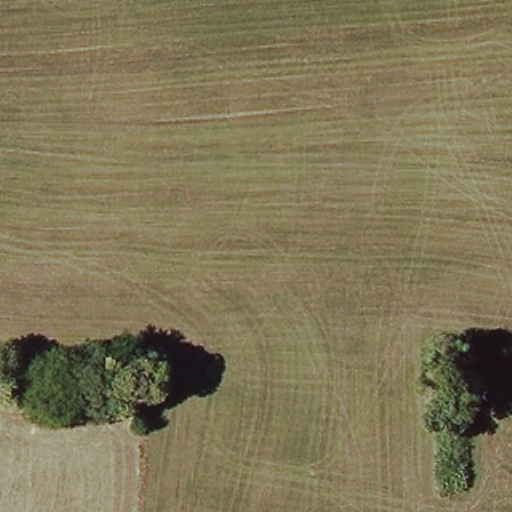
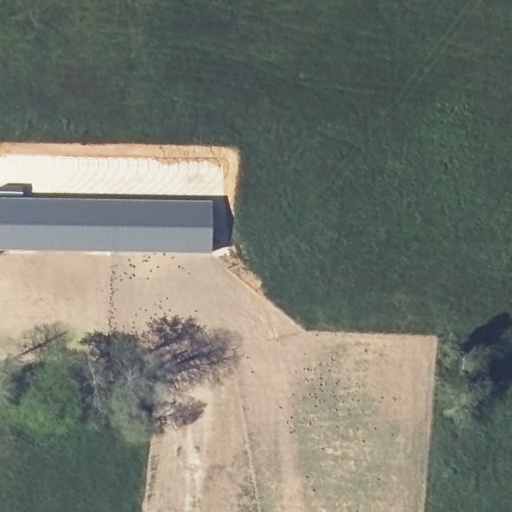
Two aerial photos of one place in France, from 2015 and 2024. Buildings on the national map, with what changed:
new [(20,197),(212,201),(211,254),(138,253),(0,250),(0,197),(20,197)]

